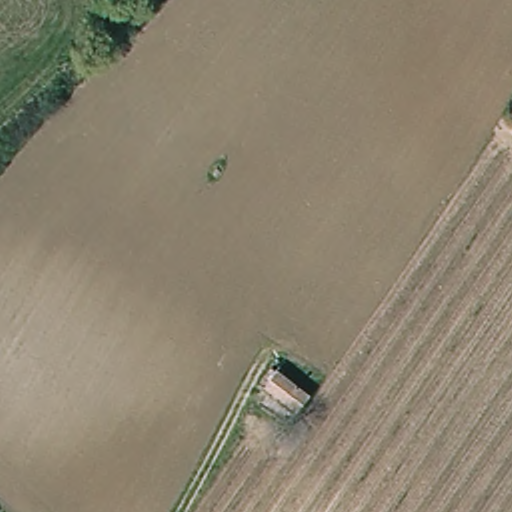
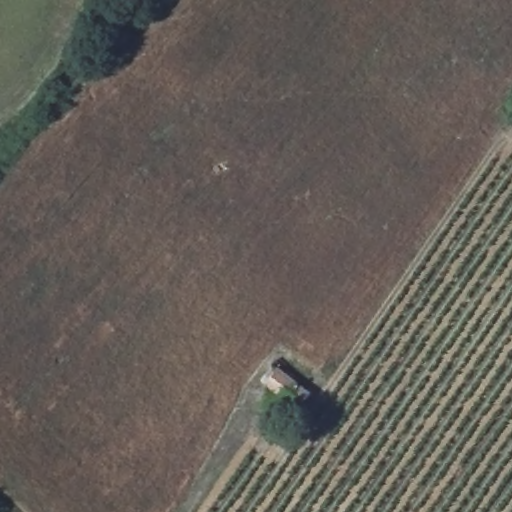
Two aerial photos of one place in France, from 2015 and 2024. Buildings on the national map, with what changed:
unchanged [(274,390),(285,374),(318,397),(306,413),(274,390)]

